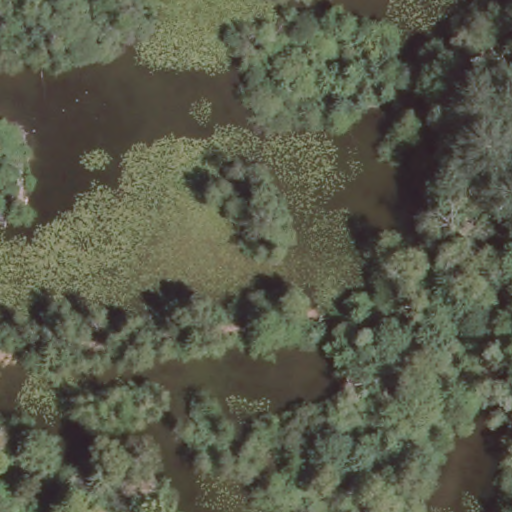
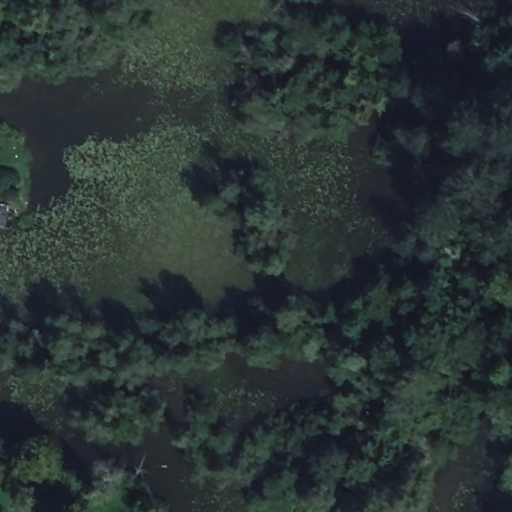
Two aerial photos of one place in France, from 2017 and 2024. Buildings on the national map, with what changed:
[]

